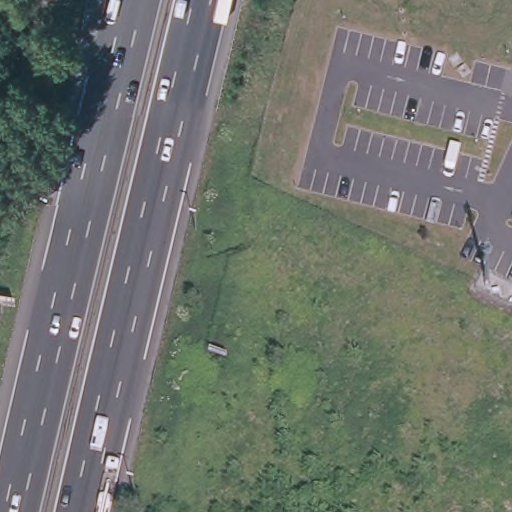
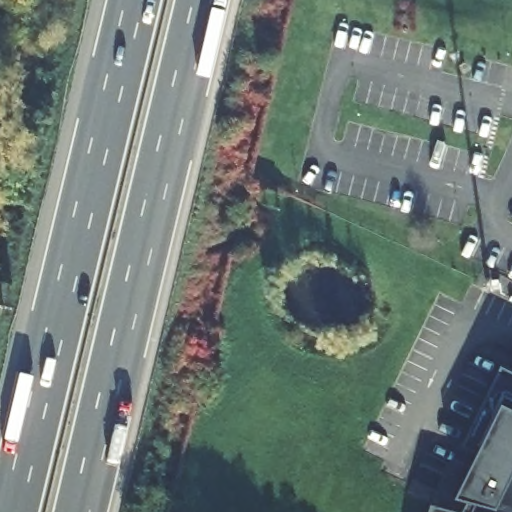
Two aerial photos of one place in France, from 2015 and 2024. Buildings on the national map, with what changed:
new [(468,500),(456,497),(478,453),(470,449),(509,368),(512,370),(512,470),(497,462),(491,474),(510,483),(497,508),(477,503),(473,512),(463,512),(468,500)]
new [(440,505),(463,512),(438,512),(440,505)]

